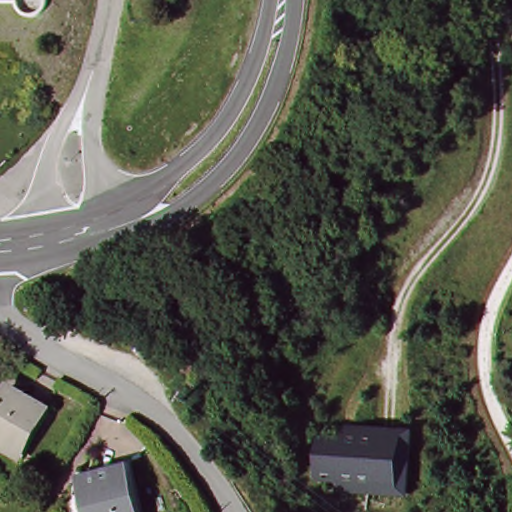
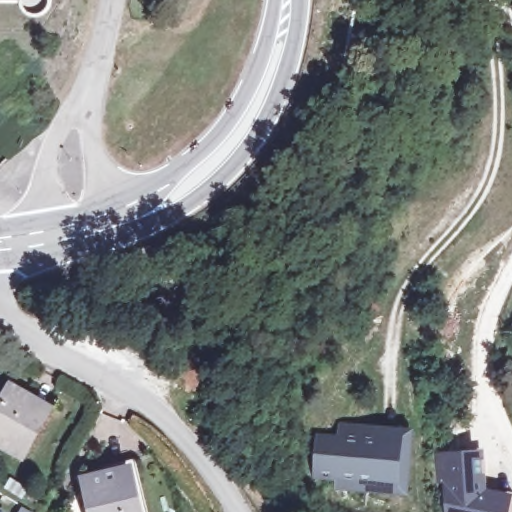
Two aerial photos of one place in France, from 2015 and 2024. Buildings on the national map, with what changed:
new [(49,8),(44,13),(37,16),(30,14),(25,10),(19,0),(51,0),(51,1),(49,8)]
unchanged [(47,409),(25,452),(0,442),(0,421),(15,395),(47,409)]
unchanged [(342,425),(417,425),(417,492),(344,492),(344,481),(403,481),(403,437),(342,437),(342,425)]
unchanged [(342,446),(342,437),(403,437),(403,481),(344,481),(322,481),(322,446),(342,446)]
new [(487,488),(512,493),(512,501),(510,512),(441,512),(433,452),(482,449),(487,488)]
unchanged [(132,473),(139,512),(95,512),(90,481),(132,473)]

